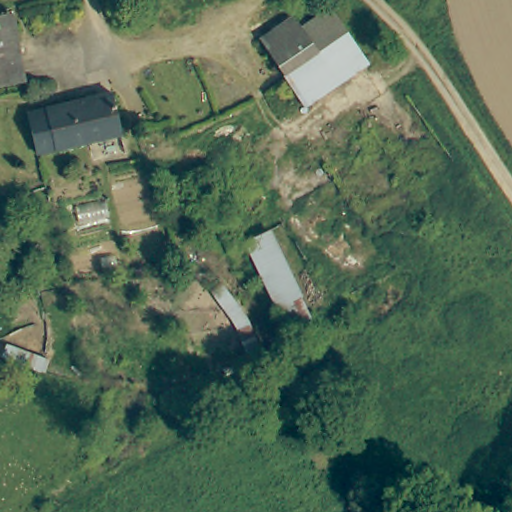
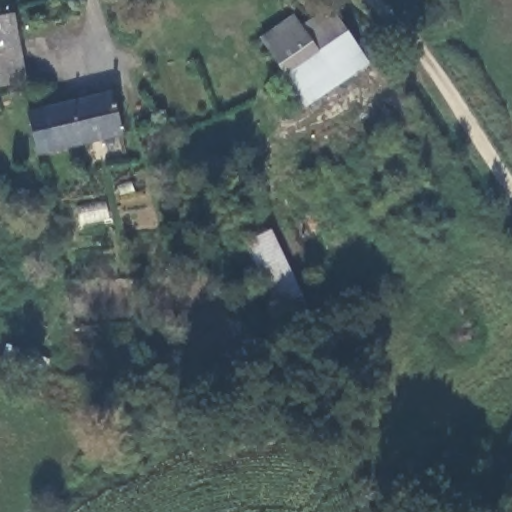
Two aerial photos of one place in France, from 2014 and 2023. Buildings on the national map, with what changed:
unchanged [(27,83),(0,87),(0,17),(14,14),(27,83)]
unchanged [(299,21),(313,44),(342,27),(366,69),(301,104),(264,41),(299,21)]
unchanged [(41,108),(103,97),(110,136),(49,149),(41,108)]
unchanged [(315,317),(288,330),(247,244),(272,230),(315,317)]

